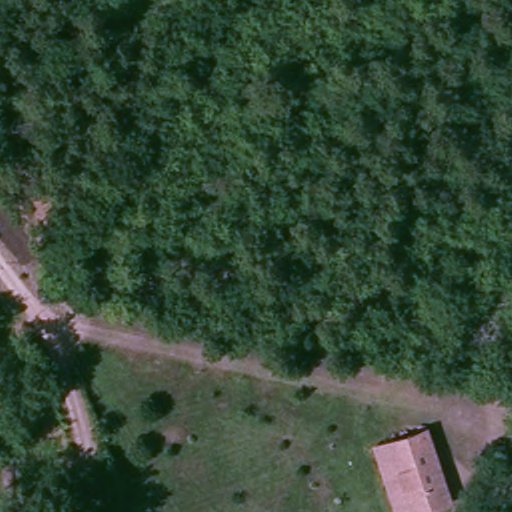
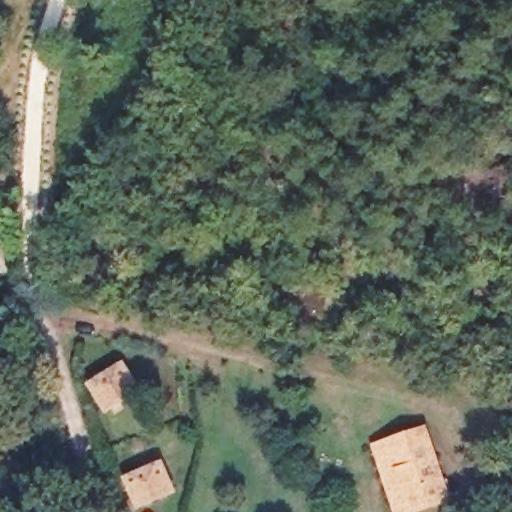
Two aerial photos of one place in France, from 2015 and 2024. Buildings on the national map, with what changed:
new [(143,391),(107,416),(86,385),(124,362),(143,391)]
unchanged [(427,434),(450,505),(428,512),(410,512),(388,446),(427,434)]
unchanged [(376,450),(388,446),(410,512),(395,512),(376,450)]
new [(177,495),(136,512),(122,478),(164,461),(177,495)]

